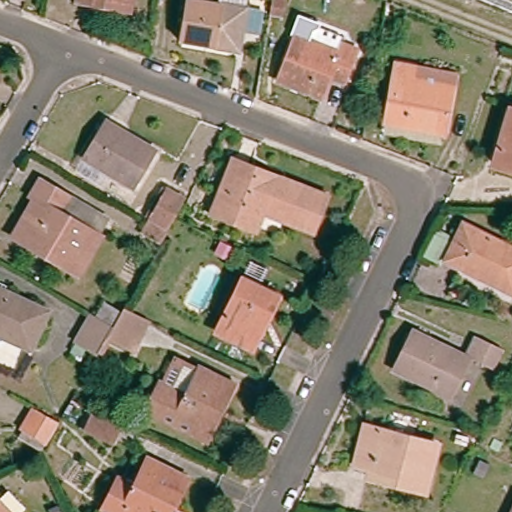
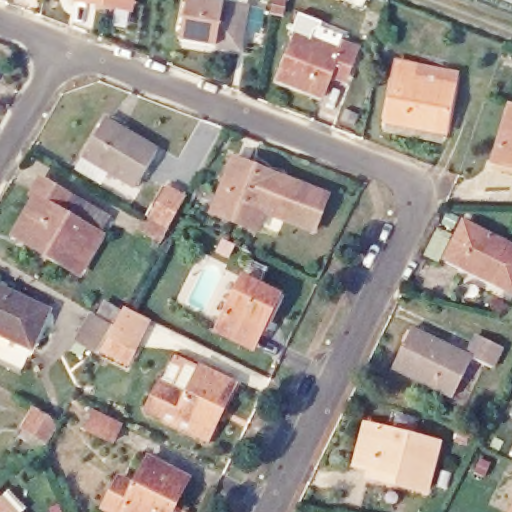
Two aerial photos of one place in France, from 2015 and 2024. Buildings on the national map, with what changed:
unchanged [(80,2),(80,0),(135,0),(133,9),(106,7),(80,2)]
unchanged [(251,0),(244,50),(181,42),(188,0),(251,0)]
unchanged [(358,48),(344,79),(333,76),(325,96),(282,79),(299,35),(315,41),(319,29),(325,27),(348,35),(345,41),(358,48)]
unchanged [(406,63),(423,66),(421,79),(460,87),(451,130),(394,119),(406,63)]
unchanged [(508,107),(512,108),(512,170),(490,162),(508,107)]
unchanged [(83,158),(105,120),(157,150),(136,186),(83,158)]
unchanged [(266,214),(262,228),(216,211),(239,158),(331,193),(317,234),(266,214)]
unchanged [(45,179),(73,194),(64,210),(108,235),(83,274),(17,237),(39,199),(36,194),(45,179)]
unchanged [(148,232),(159,215),(178,186),(194,197),(184,214),(177,228),(167,243),(148,232)]
unchanged [(467,219),(512,244),(512,291),(448,257),(467,219)]
unchanged [(226,254),(216,249),(221,239),(231,244),(226,254)]
unchanged [(220,334),(247,279),(280,298),(253,350),(220,334)]
unchanged [(0,335),(0,287),(51,313),(36,350),(0,335)]
unchanged [(80,340),(95,313),(115,324),(126,305),(153,322),(137,353),(108,339),(101,354),(80,340)]
unchanged [(414,325),(467,352),(477,333),(508,348),(497,369),(473,357),(454,394),(395,364),(414,325)]
unchanged [(184,428),(150,408),(165,381),(189,392),(205,362),(236,381),(222,410),(208,439),(184,428)]
unchanged [(29,412),(53,426),(42,446),(17,430),(29,412)]
unchanged [(91,414),(118,428),(110,446),(83,431),(91,414)]
unchanged [(375,461),(364,459),(373,421),(446,441),(434,487),(401,479),(371,474),(375,461)]
unchanged [(105,508),(124,473),(138,481),(152,455),(190,473),(173,509),(178,512),(132,512),(128,510),(127,512),(117,512),(105,508)]
unchanged [(4,512),(0,512),(0,508),(4,512)]

